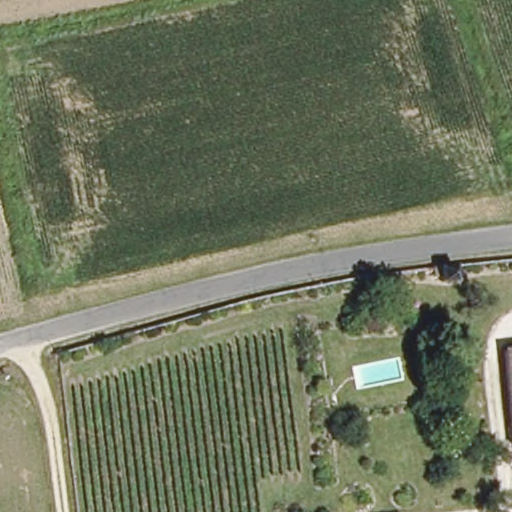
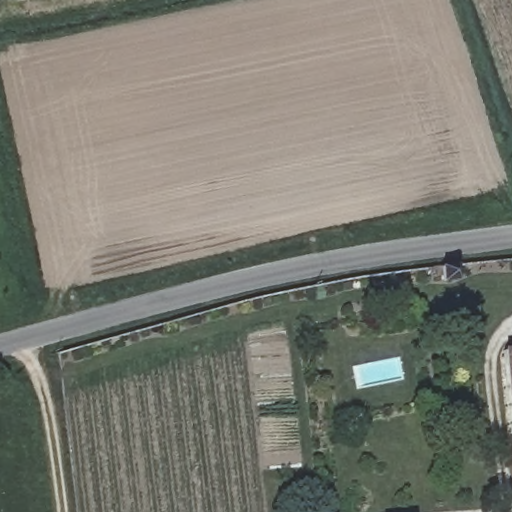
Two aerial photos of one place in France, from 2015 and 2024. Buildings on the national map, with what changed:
unchanged [(461,264),(463,278),(449,280),(448,274),(440,275),(439,267),(461,264)]
unchanged [(512,346),(512,437),(504,347),(512,346)]

